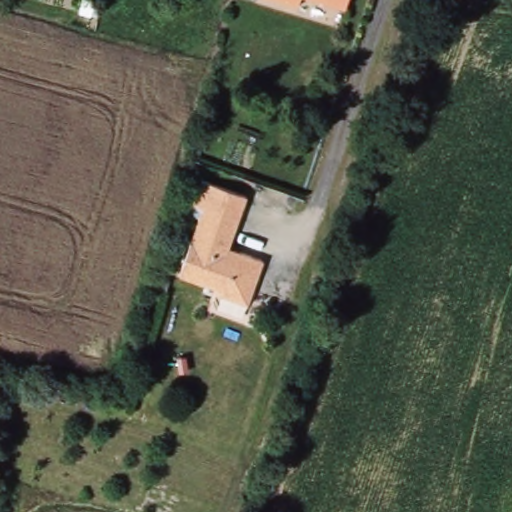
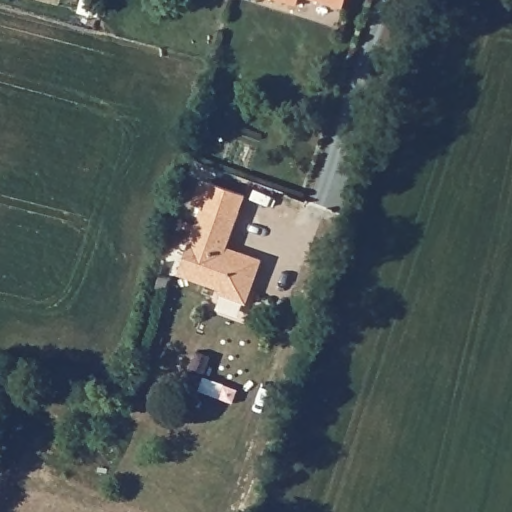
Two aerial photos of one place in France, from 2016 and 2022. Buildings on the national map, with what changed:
unchanged [(306,6),(288,0),(307,0),(306,6)]
unchanged [(328,0),(351,0),(349,6),(328,0)]
unchanged [(251,195),(232,247),(267,259),(256,290),(238,298),(224,293),(225,288),(184,274),(208,206),(198,203),(206,179),(251,195)]

